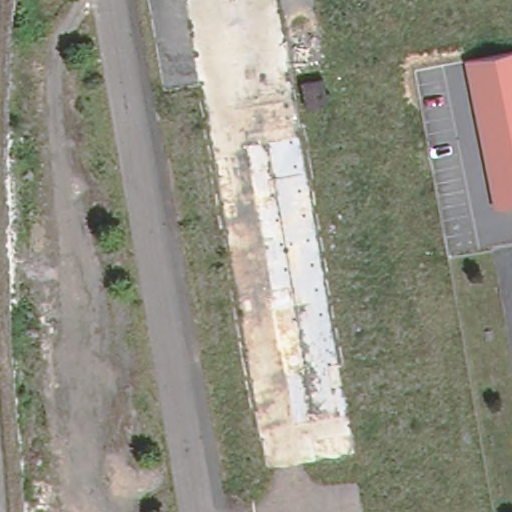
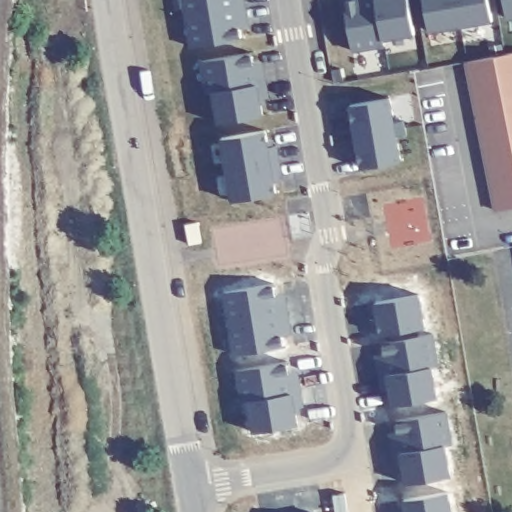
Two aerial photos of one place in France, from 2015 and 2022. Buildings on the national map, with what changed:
new [(240,29),(240,41),(189,50),(182,0),(245,0),(250,26),(240,29)]
new [(384,38),(385,45),(352,51),(342,0),(408,0),(413,34),(384,38)]
new [(430,31),(425,0),(489,0),(492,21),(430,31)]
new [(504,0),(512,0),(512,16),(507,17),(504,0)]
unchanged [(512,207),(492,211),(465,63),(512,53),(512,207)]
new [(251,56),(251,66),(262,64),(268,98),(258,100),(262,118),(216,124),(212,96),(206,97),(199,64),(251,56)]
new [(390,101),(394,126),(404,125),(407,138),(395,141),(399,163),(360,172),(347,109),(390,101)]
new [(266,149),(277,148),(281,181),(270,183),(272,198),(229,204),(220,141),(264,135),(266,149)]
new [(273,288),(274,300),(286,298),(292,336),(281,338),(282,351),(232,357),(222,295),(273,288)]
new [(419,302),(424,336),(433,335),(437,367),(429,368),(434,402),(390,408),(372,307),(419,302)]
new [(285,367),(285,374),(298,373),(302,411),(292,414),(295,430),(250,435),(247,405),(240,406),(236,372),(285,367)]
new [(447,415),(452,446),(442,447),(449,480),(405,488),(395,423),(447,415)]
new [(447,498),(449,512),(404,512),(402,504),(447,498)]

